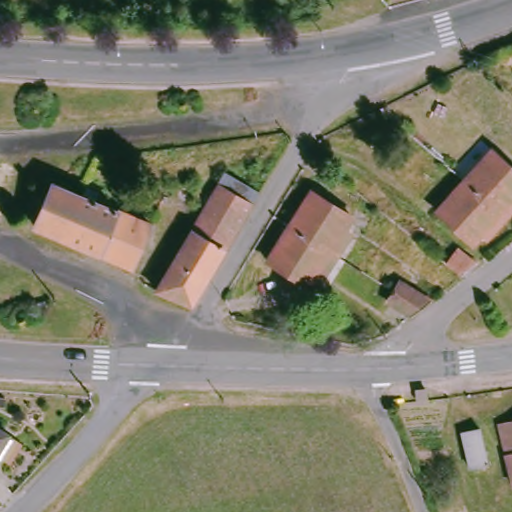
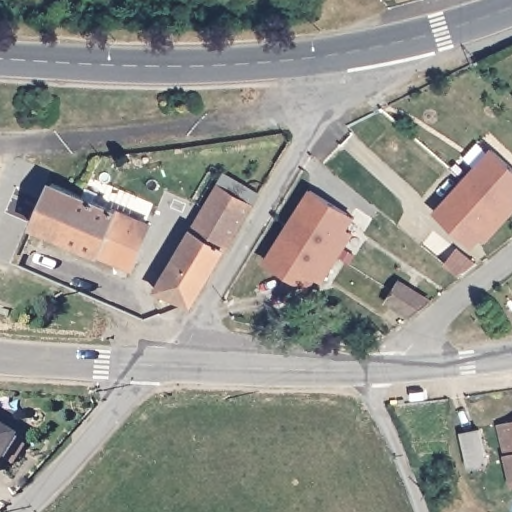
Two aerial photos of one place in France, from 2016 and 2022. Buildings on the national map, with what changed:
unchanged [(489,142),(512,164),(512,188),(495,207),(460,174),(489,142)]
unchanged [(467,238),(431,206),(460,174),(495,207),(467,238)]
unchanged [(187,316),(180,317),(152,304),(222,184),(256,203),(187,316)]
unchanged [(35,226),(51,185),(81,197),(85,189),(97,194),(93,202),(150,225),(132,267),(35,226)]
unchanged [(293,230),(315,194),(357,221),(335,256),(293,230)]
unchanged [(313,292),(271,267),(293,230),(335,256),(313,292)]
unchanged [(443,257),(455,243),(475,260),(461,271),(443,257)]
unchanged [(388,300),(395,290),(401,281),(433,300),(424,308),(415,315),(388,300)]
unchanged [(512,419),(512,476),(500,421),(512,419)]
unchanged [(481,426),(489,460),(470,464),(462,430),(481,426)]
unchanged [(10,432),(0,447),(0,427),(10,432)]

